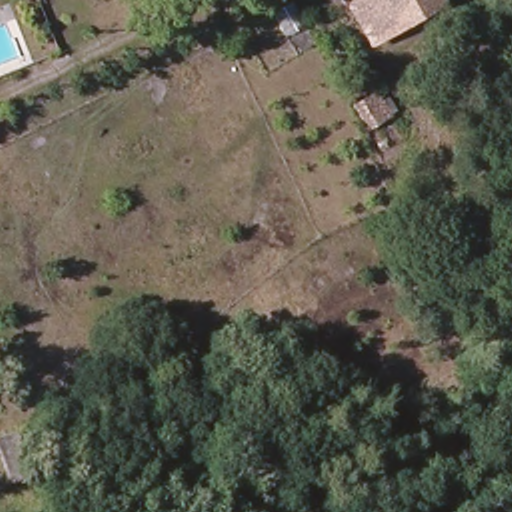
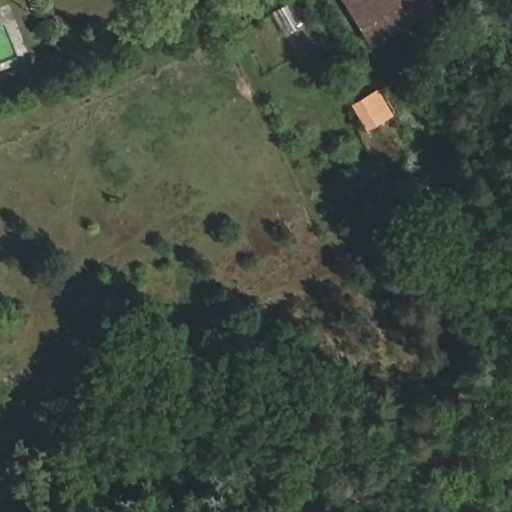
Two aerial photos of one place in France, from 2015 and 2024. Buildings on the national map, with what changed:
unchanged [(344,0),(375,0),(394,34),(370,47),(344,0)]
unchanged [(433,0),(439,10),(394,34),(375,0),(433,0)]

